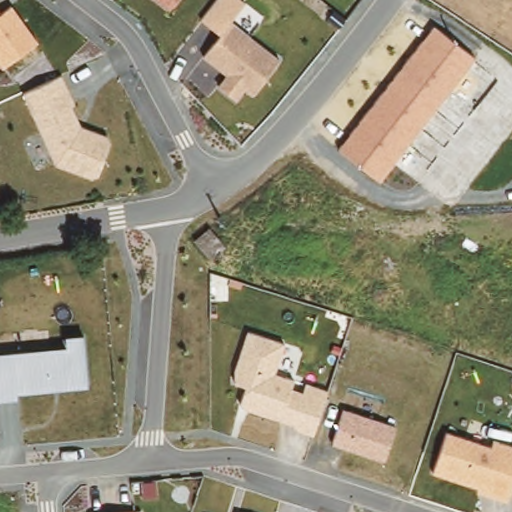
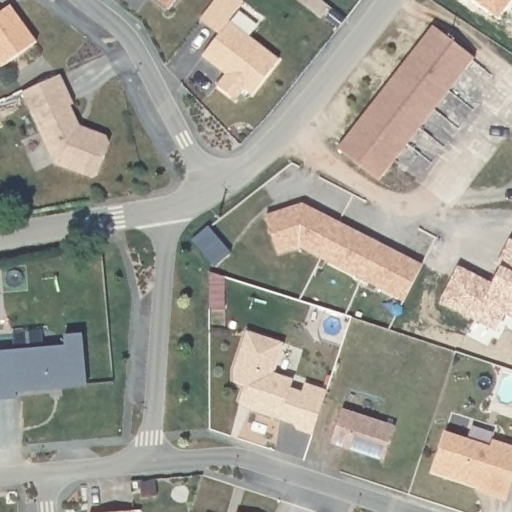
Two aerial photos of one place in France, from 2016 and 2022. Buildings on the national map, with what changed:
unchanged [(155,0),(177,0),(168,10),(155,0)]
unchanged [(215,0),(242,0),(246,3),(231,23),(221,35),(200,18),(215,0)]
unchanged [(2,15),(14,8),(38,45),(0,68),(0,13),(1,15),(2,15)]
unchanged [(278,62),(253,96),(245,91),(237,101),(217,87),(226,74),(202,57),(231,23),(278,62)]
unchanged [(475,58),(378,182),(337,147),(433,24),(475,58)]
unchanged [(76,105),(72,107),(81,127),(109,136),(110,144),(98,176),(90,178),(54,165),(23,92),(61,74),(76,105)]
new [(422,264),(404,299),(300,247),(280,254),(266,215),(302,204),(422,264)]
new [(499,265),(510,240),(512,241),(512,316),(505,312),(496,330),(440,303),(459,265),(490,281),(499,265)]
new [(207,278),(209,309),(193,310),(191,273),(207,278)]
unchanged [(285,343),(275,375),(296,380),(293,389),(303,391),(306,382),(328,389),(312,436),(296,430),(293,425),(247,410),(238,404),(244,386),(233,383),(233,369),(246,331),(285,343)]
unchanged [(66,346),(65,336),(83,333),(88,387),(15,393),(15,399),(0,400),(0,352),(66,346)]
unchanged [(395,426),(384,461),(332,443),(343,409),(395,426)]
unchanged [(492,440),(512,446),(512,488),(507,502),(474,492),(476,488),(431,473),(446,430),(490,445),(492,440)]
unchanged [(135,511),(135,512),(122,512),(135,511)]
unchanged [(238,511),(241,512),(238,512),(238,511)]

